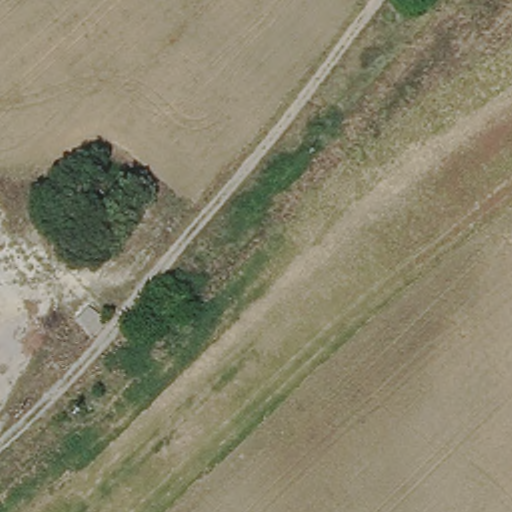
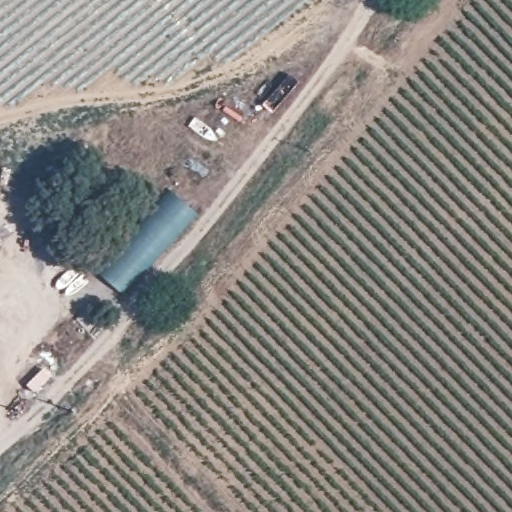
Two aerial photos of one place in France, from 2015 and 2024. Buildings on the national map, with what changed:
new [(96,272),(172,192),(195,215),(119,293),(96,272)]
demolished [(114,321),(90,342),(70,321),(91,299),(114,321)]

